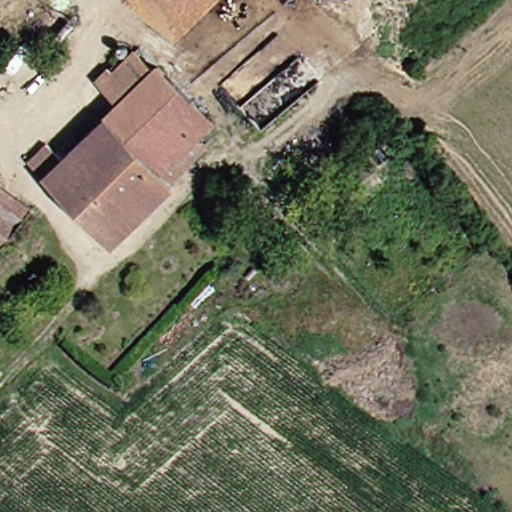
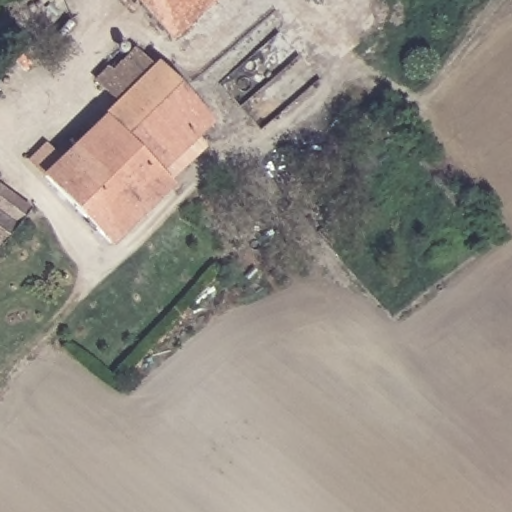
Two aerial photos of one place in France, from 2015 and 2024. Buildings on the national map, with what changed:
unchanged [(164,34),(129,0),(196,0),(164,34)]
unchanged [(157,182),(160,186),(100,245),(19,160),(36,144),(51,160),(94,117),(108,103),(86,81),(97,70),(101,74),(123,51),(142,70),(147,66),(201,122),(184,139),(193,148),(157,182)]
unchanged [(20,209),(0,234),(0,194),(20,209)]

